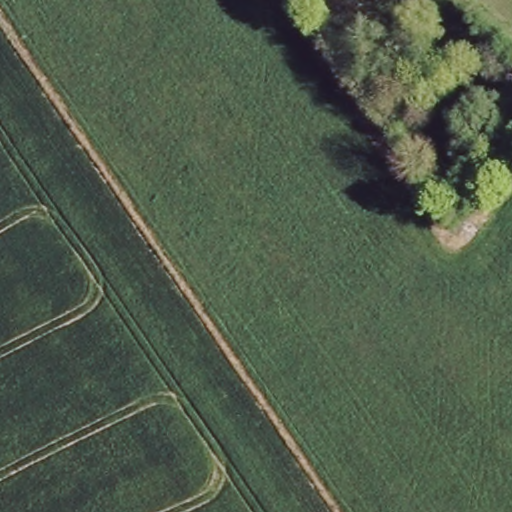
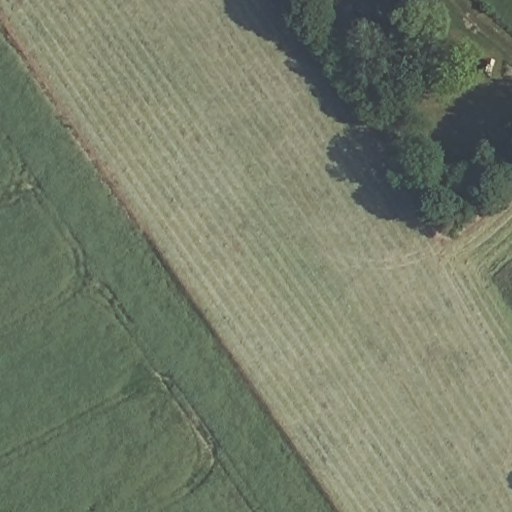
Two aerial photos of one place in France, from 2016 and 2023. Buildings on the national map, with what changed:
unchanged [(309,4),(305,0),(313,0),(309,4)]

